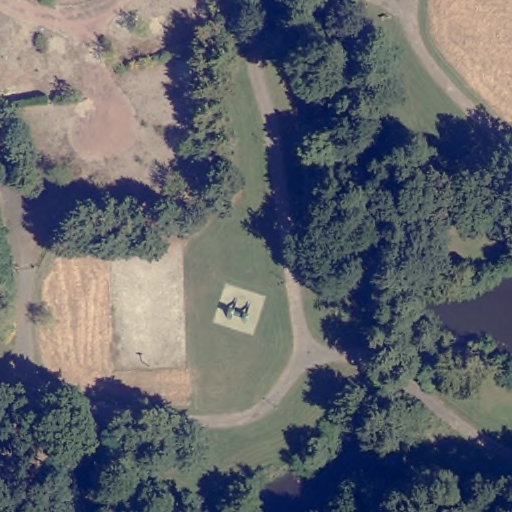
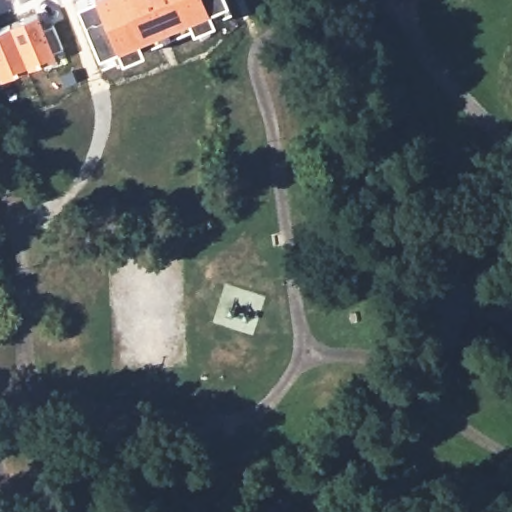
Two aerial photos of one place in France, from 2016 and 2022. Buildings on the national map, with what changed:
new [(229,0),(232,7),(214,15),(216,20),(194,30),(190,24),(141,44),(142,49),(122,57),(117,47),(99,54),(76,2),(79,0),(229,0)]
new [(45,27),(54,24),(62,47),(54,50),(56,56),(0,79),(0,28),(39,12),(45,27)]

